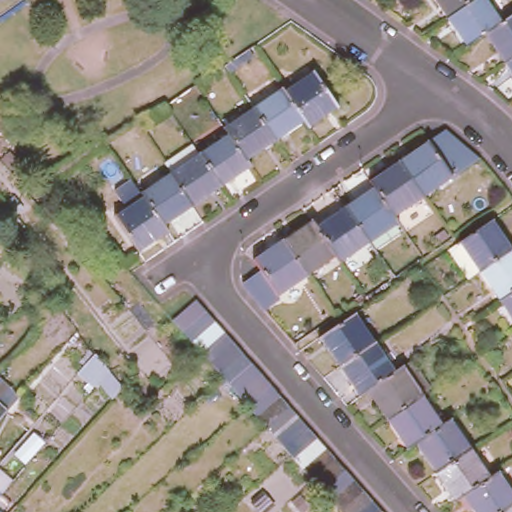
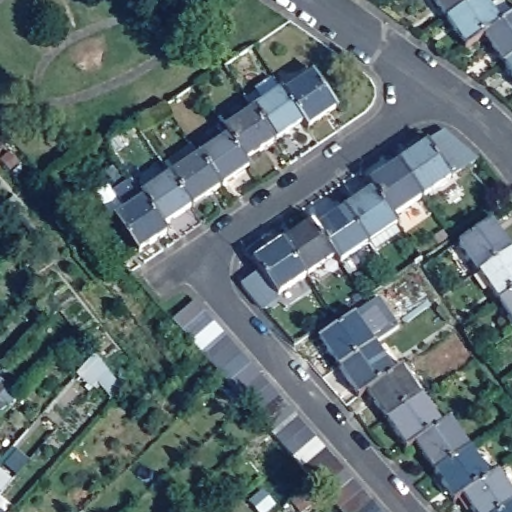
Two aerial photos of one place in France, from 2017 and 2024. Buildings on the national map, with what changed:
unchanged [(441,0),(469,0),(450,14),(441,0)]
unchanged [(505,19),(488,31),(470,43),(450,14),(469,0),(492,0),(505,19)]
unchanged [(507,59),(488,31),(505,19),(512,15),(512,56),(507,59)]
unchanged [(247,50),(252,57),(229,74),(224,67),(247,50)]
unchanged [(507,59),(512,56),(512,66),(507,59)]
unchanged [(320,67),(344,100),(314,121),(308,114),(290,88),(320,67)]
unchanged [(230,125),(259,104),(250,91),(263,81),(273,94),(287,84),(290,88),(308,114),(280,135),(251,156),(234,132),(230,125)]
unchanged [(251,156),(255,161),(225,182),(205,152),(234,132),(251,156)]
unchanged [(420,200),(397,165),(427,144),(437,137),(457,152),(467,161),(470,164),(450,179),(420,200)]
unchanged [(225,182),(195,202),(175,172),(167,162),(197,141),(205,152),(225,182)]
unchanged [(397,165),(420,200),(392,220),(372,190),(368,184),(397,165)]
unchanged [(169,221),(150,195),(147,191),(175,172),(195,202),(169,221)]
unchanged [(344,210),(372,190),(392,220),(396,226),(368,245),(344,210)]
unchanged [(150,195),(169,221),(173,227),(143,247),(120,215),(150,195)]
unchanged [(368,245),(339,266),(335,259),(315,230),(344,210),(368,245)]
unchanged [(490,214),(510,244),(480,266),(458,236),(490,214)]
unchanged [(282,244),(310,224),(315,230),(335,259),(305,280),(282,244)]
unchanged [(250,265),(282,244),(305,280),(275,300),(260,311),(240,288),(258,276),(250,265)]
unchanged [(510,244),(512,246),(512,285),(500,295),(480,266),(510,244)]
unchanged [(512,285),(512,312),(500,295),(512,285)]
unchanged [(296,456),(287,445),(277,435),(272,427),(268,424),(259,413),(252,406),(250,403),(241,393),(232,382),(227,377),(223,372),(212,361),(204,352),(195,342),(187,332),(177,321),(199,301),(209,312),(217,322),(227,332),(235,342),(245,353),(253,362),(263,373),(272,383),(281,394),(290,405),(300,415),(308,425),(318,437),(327,446),(335,456),(345,467),(355,478),(364,488),(373,498),(382,509),(385,512),(346,512),(342,508),(334,499),(333,498),(323,487),(317,480),(314,476),(305,466),(296,456)]
unchanged [(345,364),(323,333),(357,310),(377,341),(345,364)]
unchanged [(397,368),(372,386),(363,392),(345,364),(377,341),(397,368)]
unchanged [(112,397),(97,380),(92,386),(80,370),(95,352),(107,369),(121,387),(112,397)]
unchanged [(391,415),(372,386),(397,368),(405,362),(425,391),(391,415)]
unchanged [(0,378),(2,377),(23,396),(0,422),(0,378)]
unchanged [(425,391),(445,420),(419,437),(410,443),(391,415),(425,391)]
unchanged [(472,445),(439,467),(419,437),(445,420),(452,415),(472,445)]
unchanged [(465,491),(457,496),(439,467),(472,445),(491,473),(465,491)]
unchanged [(491,473),(500,467),(512,486),(512,500),(495,512),(480,512),(465,491),(491,473)]
unchanged [(495,512),(512,500),(512,512),(495,512)]
unchanged [(7,512),(0,512),(0,501),(7,512)]

